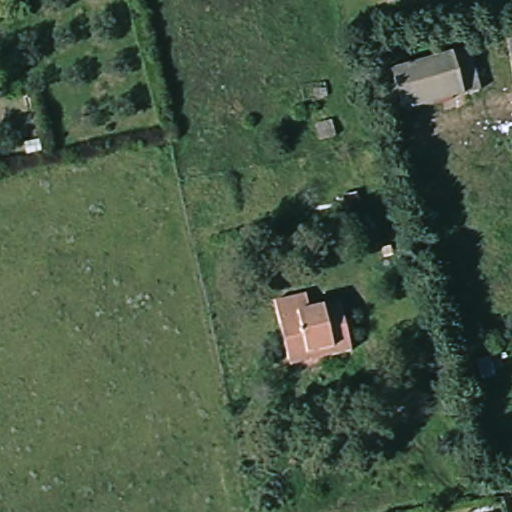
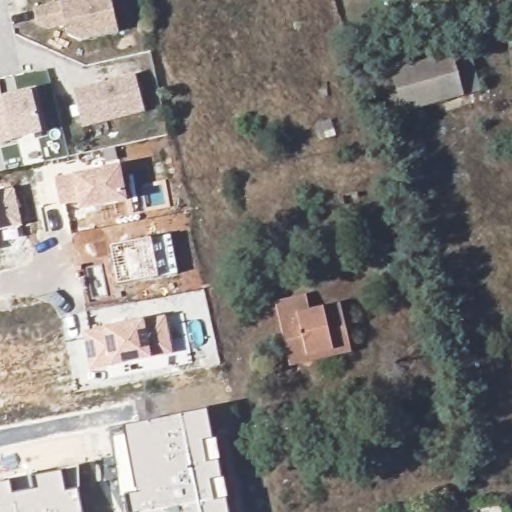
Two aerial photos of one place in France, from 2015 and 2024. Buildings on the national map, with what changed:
new [(109,0),(116,29),(78,37),(65,31),(63,20),(48,24),(34,17),(32,5),(52,0),(109,0)]
unchanged [(512,37),(512,72),(508,37),(512,37)]
unchanged [(462,49),(474,91),(396,113),(384,71),(462,49)]
new [(134,73),(143,109),(81,124),(72,88),(134,73)]
new [(1,99),(32,92),(42,134),(0,143),(0,101),(2,101),(1,99)]
new [(56,179),(73,175),(122,166),(129,203),(80,212),(79,203),(61,207),(56,179)]
new [(23,225),(0,228),(0,193),(15,191),(23,225)]
new [(171,235),(179,274),(159,278),(119,286),(111,247),(152,239),(171,235)]
unchanged [(307,301),(312,318),(341,312),(352,357),(290,372),(276,309),(307,301)]
new [(174,355),(152,360),(111,367),(89,370),(83,332),(103,327),(143,320),(166,315),(174,355)]
new [(207,410),(213,441),(218,440),(222,461),(220,461),(222,480),(225,480),(229,500),(227,500),(229,512),(129,512),(126,496),(121,498),(114,441),(127,437),(125,427),(207,410)]
new [(0,485),(36,477),(62,472),(62,471),(80,467),(78,491),(82,512),(0,512),(0,485)]

